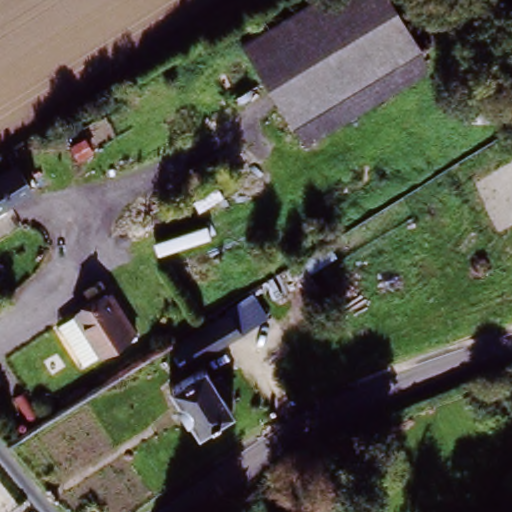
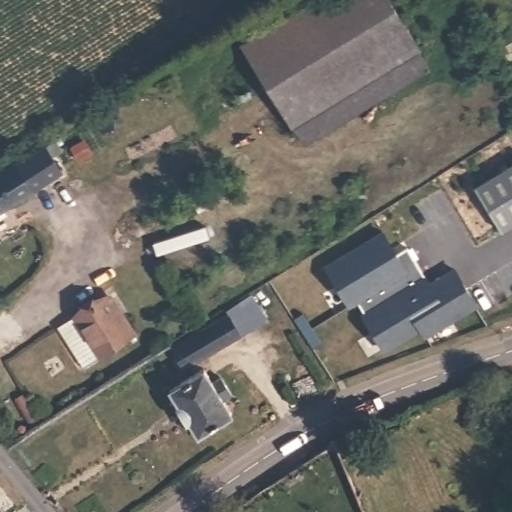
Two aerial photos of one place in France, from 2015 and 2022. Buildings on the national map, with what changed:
unchanged [(303,144),(246,41),(314,0),(393,0),(433,71),(303,144)]
unchanged [(32,196),(0,215),(0,172),(14,164),(32,196)]
new [(512,170),(512,229),(506,233),(480,191),(512,170)]
new [(387,235),(400,256),(411,249),(434,287),(459,271),(481,306),(430,338),(425,330),(389,353),(367,318),(369,317),(361,304),(354,309),(332,270),(387,235)]
unchanged [(107,297),(125,324),(128,322),(137,337),(102,360),(78,317),(107,297)]
unchanged [(170,346),(231,311),(257,298),(267,320),(244,335),(184,372),(170,346)]
unchanged [(86,371),(61,329),(78,317),(102,360),(86,371)]
unchanged [(209,368),(240,415),(201,442),(171,394),(209,368)]

